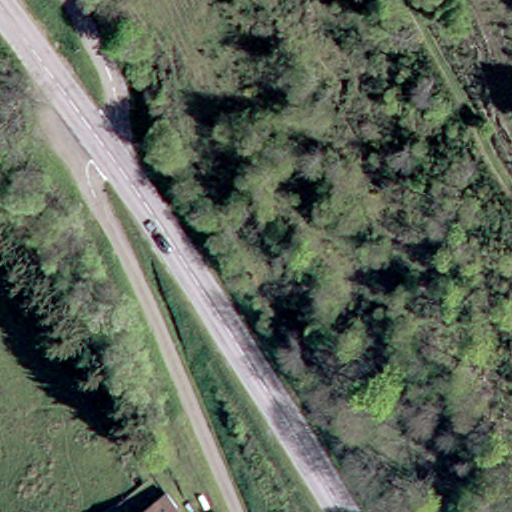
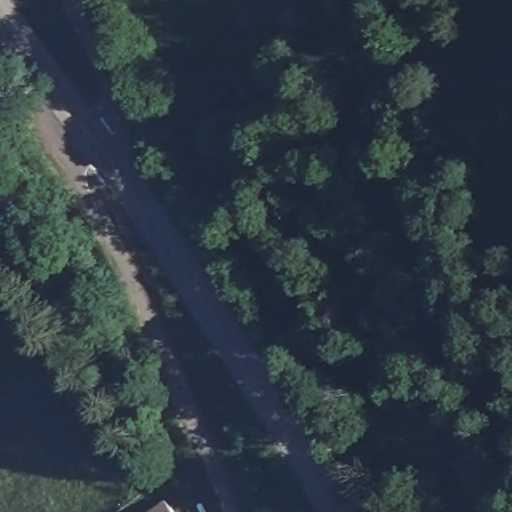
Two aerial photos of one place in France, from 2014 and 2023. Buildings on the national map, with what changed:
unchanged [(173,512),(160,512),(168,505),(173,512)]

